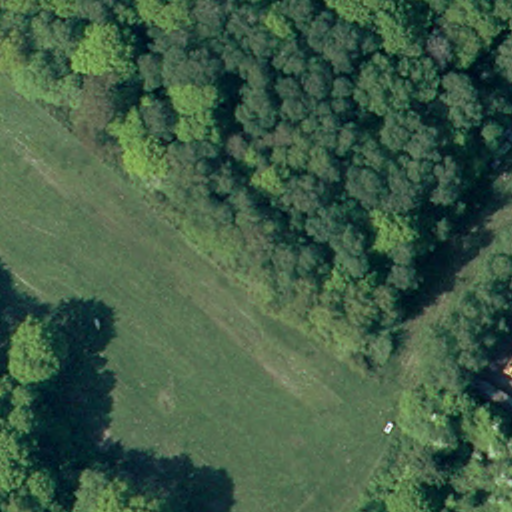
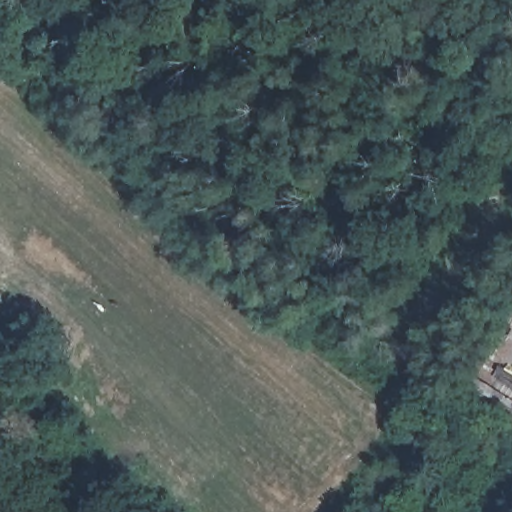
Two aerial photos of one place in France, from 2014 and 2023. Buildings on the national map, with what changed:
unchanged [(472,374),(512,398),(512,416),(464,387),(472,374)]

